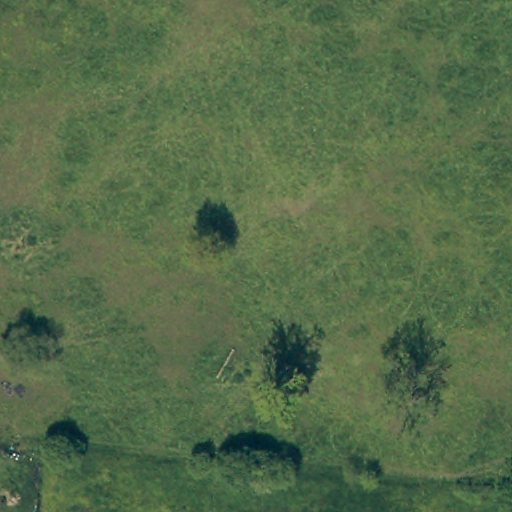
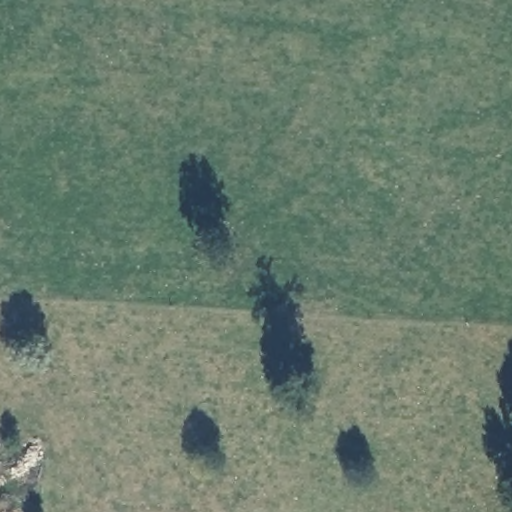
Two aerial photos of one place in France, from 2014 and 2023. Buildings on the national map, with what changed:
[]

